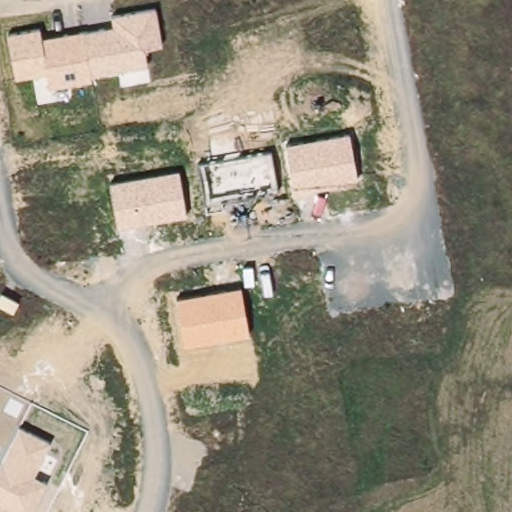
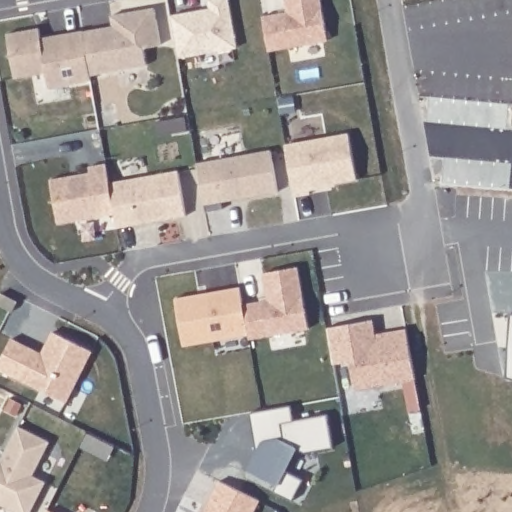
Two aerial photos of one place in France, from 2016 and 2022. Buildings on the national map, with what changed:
new [(213,1),(213,0),(233,0),(240,40),(182,51),(175,9),(213,1)]
new [(290,4),(289,0),(325,0),(331,32),(272,43),(265,8),(290,4)]
unchanged [(7,35),(41,28),(43,37),(112,25),(111,15),(157,7),(164,44),(145,49),(147,65),(89,75),(91,81),(48,87),(45,71),(15,78),(7,35)]
unchanged [(286,146),(352,133),(357,180),(293,193),(286,146)]
unchanged [(201,163),(271,151),(277,189),(222,197),(223,209),(208,212),(201,163)]
new [(50,178),(89,172),(88,166),(106,162),(110,183),(115,213),(59,224),(50,178)]
unchanged [(110,183),(179,171),(185,215),(117,226),(110,183)]
new [(245,304),(267,300),(262,273),(298,265),(308,328),(250,338),(250,334),(245,304)]
unchanged [(176,300),(243,288),(250,334),(184,345),(176,300)]
new [(379,328),(388,326),(410,322),(419,372),(360,383),(355,354),(338,357),(332,321),(377,313),(379,328)]
new [(36,344),(44,348),(55,326),(94,346),(69,397),(0,363),(0,360),(14,333),(36,344)]
new [(260,447),(253,407),(295,399),(297,414),(331,408),(337,442),(308,447),(301,442),(289,465),(307,474),(296,495),(277,485),(281,479),(252,464),(260,447)]
unchanged [(19,424),(52,440),(34,476),(46,483),(30,512),(20,512),(0,502),(0,460),(19,424)]
new [(263,495),(255,512),(205,512),(224,475),(263,495)]
new [(62,512),(48,512),(51,506),(62,512)]

